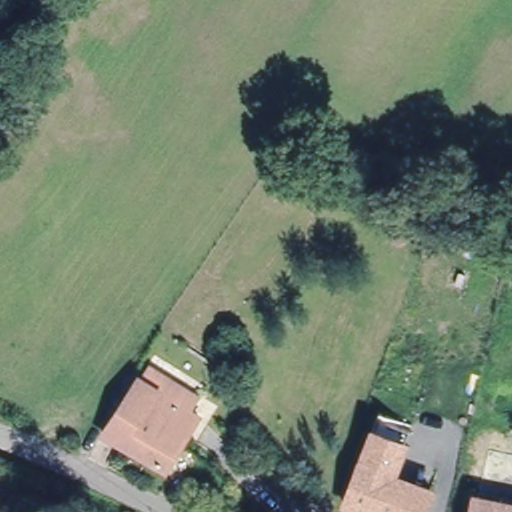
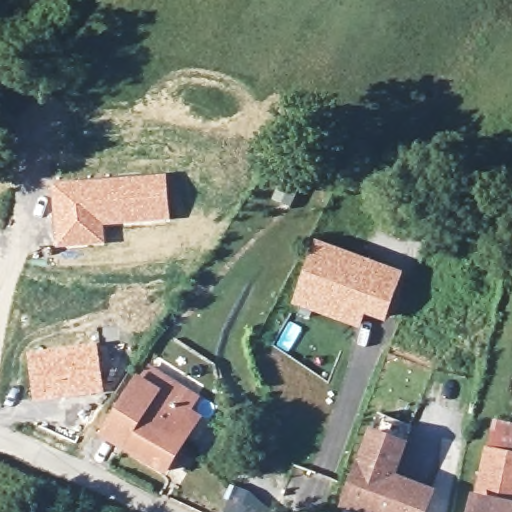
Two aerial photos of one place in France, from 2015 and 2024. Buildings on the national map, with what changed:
new [(168,175),(171,220),(105,226),(106,244),(55,247),(51,182),(168,175)]
new [(317,308),(296,300),(318,242),(398,272),(382,316),(362,308),(356,323),(317,308)]
new [(98,341),(104,393),(33,402),(28,352),(98,341)]
unchanged [(130,385),(136,372),(136,371),(151,379),(170,389),(186,397),(184,401),(180,411),(189,416),(161,469),(111,444),(101,438),(129,384),(130,385)]
unchanged [(393,483),(431,498),(426,512),(348,512),(345,511),(378,424),(411,437),(393,483)]
unchanged [(486,447),(512,452),(512,501),(478,493),(486,447)]
unchanged [(512,501),(512,512),(473,512),(478,493),(512,501)]

